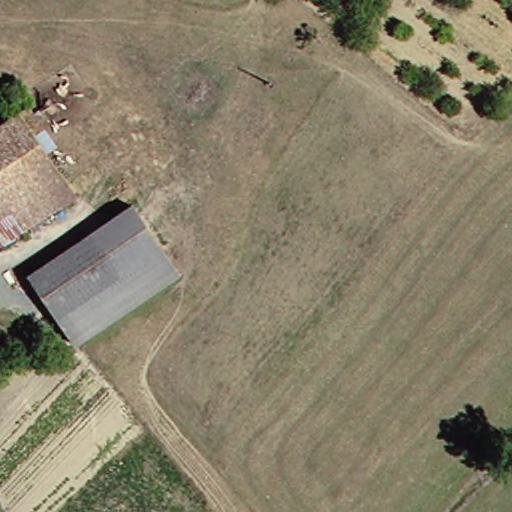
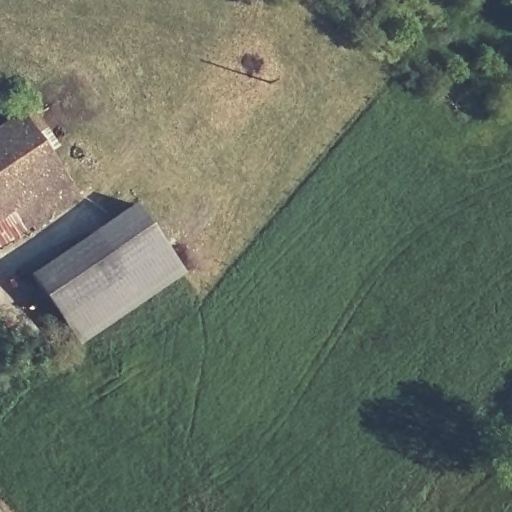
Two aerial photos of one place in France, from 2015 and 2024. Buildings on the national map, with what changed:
unchanged [(0,216),(0,127),(28,108),(40,130),(34,134),(61,174),(0,216)]
unchanged [(77,196),(0,251),(0,216),(61,174),(77,196)]
unchanged [(75,345),(29,275),(133,207),(179,277),(75,345)]

